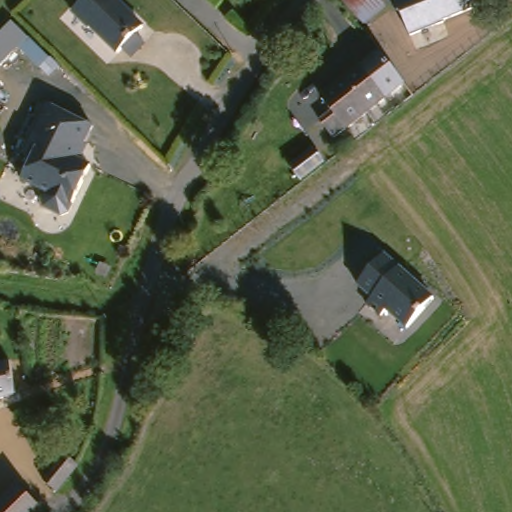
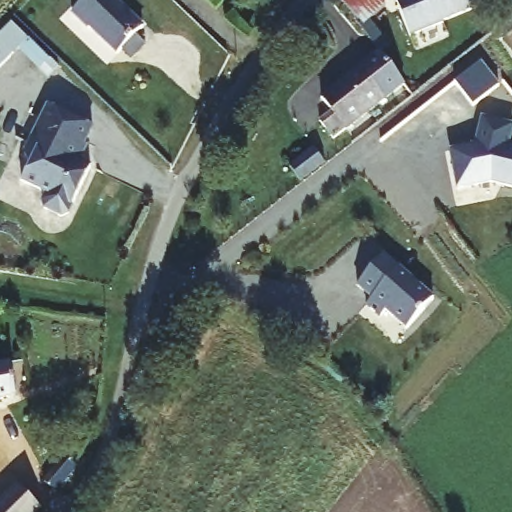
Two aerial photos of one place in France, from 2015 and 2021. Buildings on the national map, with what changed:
unchanged [(135,36),(143,45),(128,59),(120,50),(115,54),(89,25),(88,27),(72,10),(83,0),(116,0),(142,29),(135,36)]
unchanged [(389,5),(368,25),(344,0),(384,0),(389,5)]
unchanged [(474,8),(443,20),(444,22),(409,36),(396,0),(471,0),(474,8)]
unchanged [(414,80),(345,134),(329,113),(342,104),(331,90),(387,45),(414,80)]
unchanged [(80,156),(93,164),(68,215),(39,203),(44,191),(21,182),(35,152),(27,149),(45,103),(92,122),(80,156)]
new [(486,120),(512,125),(512,188),(495,184),(460,190),(452,153),(480,147),(486,120)]
unchanged [(323,167),(313,154),(337,136),(347,149),(323,167)]
unchanged [(385,312),(379,318),(364,305),(371,298),(356,284),(384,253),(434,300),(406,330),(385,312)]
unchanged [(14,357),(18,394),(0,400),(0,362),(14,357)]
unchanged [(55,494),(42,480),(63,456),(78,468),(55,494)]
unchanged [(0,512),(0,506),(18,487),(41,511),(39,512),(0,512)]

